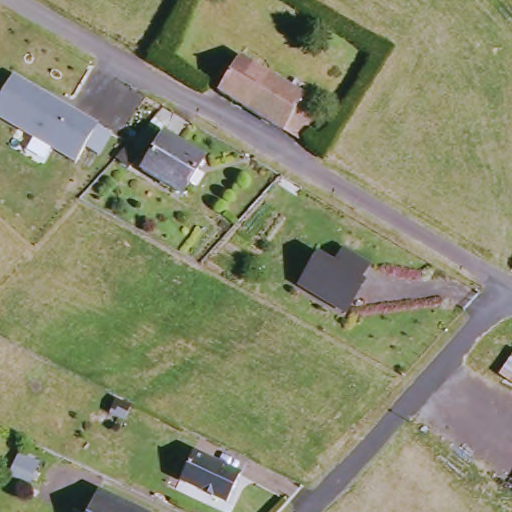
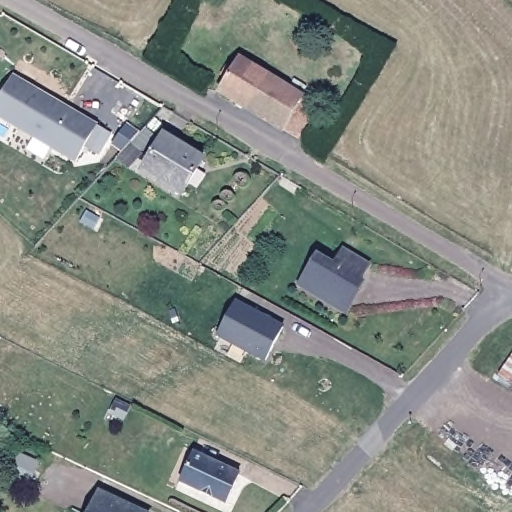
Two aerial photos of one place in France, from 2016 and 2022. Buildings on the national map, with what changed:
unchanged [(295,140),(287,134),(278,133),(221,94),(243,61),(316,109),(295,140)]
unchanged [(53,100),(56,96),(96,136),(67,166),(0,102),(0,94),(23,71),(53,100)]
unchanged [(126,173),(114,163),(130,145),(145,129),(152,140),(139,154),(142,156),(126,173)]
unchanged [(188,192),(147,172),(166,138),(207,160),(188,192)]
unchanged [(358,283),(363,287),(346,314),(299,286),(318,258),(335,268),(344,254),(367,269),(358,283)]
new [(237,300),(283,324),(264,362),(217,338),(237,300)]
unchanged [(125,421),(110,414),(116,403),(131,411),(125,421)]
unchanged [(231,504),(186,484),(198,456),(245,478),(231,504)]
unchanged [(32,465),(21,488),(4,479),(15,457),(32,465)]
unchanged [(103,494),(143,512),(95,512),(103,494)]

